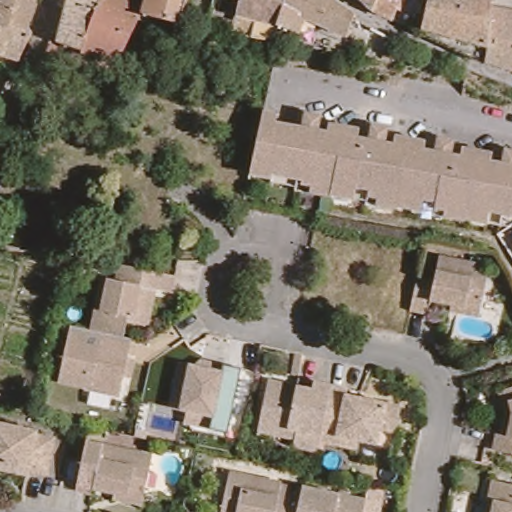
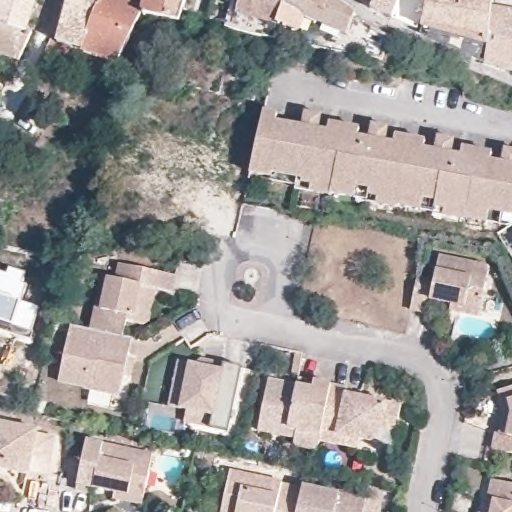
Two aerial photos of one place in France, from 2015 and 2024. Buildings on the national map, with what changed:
unchanged [(31,32),(18,60),(0,53),(0,27),(0,26),(0,0),(34,0),(26,24),(31,32)]
unchanged [(58,30),(65,2),(65,0),(145,0),(143,8),(153,11),(150,19),(137,14),(116,57),(56,37),(58,30)]
unchanged [(178,16),(153,11),(143,8),(145,0),(184,0),(181,7),(178,16)]
unchanged [(273,35),(233,27),(228,26),(234,0),(280,0),(276,21),(273,35)]
unchanged [(353,12),(346,31),(303,12),(296,27),(276,21),(280,0),(341,0),(354,8),(353,12)]
unchanged [(371,0),(402,0),(397,14),(374,2),(371,0)]
unchanged [(489,57),(423,25),(425,22),(430,0),(496,0),(496,2),(512,4),(512,64),(489,57)]
unchanged [(373,28),(390,37),(385,47),(368,41),(373,28)]
unchanged [(58,79),(33,70),(49,35),(56,37),(116,57),(111,69),(107,76),(66,61),(58,79)]
unchanged [(508,231),(486,227),(461,222),(460,226),(440,222),(431,221),(431,216),(417,212),(397,209),(396,212),(374,207),(364,206),(364,201),(351,199),(330,194),(328,198),(309,194),(301,193),(300,191),(269,185),(268,183),(268,182),(248,177),(261,114),(275,118),(274,126),(299,131),(303,117),(318,120),(315,135),(325,137),(327,127),(357,134),(356,143),(365,145),(368,131),(386,134),(383,148),(390,150),(392,142),(421,148),(420,157),(432,159),(435,145),(451,149),(448,163),(456,165),(459,156),(488,162),(486,173),(497,175),(500,160),(512,162),(512,228),(508,231)]
unchanged [(435,300),(433,307),(413,303),(420,271),(439,274),(443,250),(487,258),(491,263),(483,301),(482,308),(435,300)]
unchanged [(148,322),(135,319),(132,318),(120,327),(105,312),(113,279),(119,280),(123,264),(179,276),(176,292),(160,288),(153,319),(148,322)]
new [(8,265),(30,273),(21,300),(40,307),(31,335),(0,324),(0,270),(5,272),(8,265)]
unchanged [(65,380),(73,338),(105,345),(108,331),(131,336),(138,337),(127,388),(125,395),(89,387),(90,385),(65,380)]
unchanged [(238,372),(223,430),(176,422),(179,412),(164,407),(175,361),(238,372)]
unchanged [(272,373),(316,382),(319,375),(335,378),(323,432),(321,442),(308,438),(303,436),(299,431),(263,423),(265,413),(272,373)]
unchanged [(340,436),(323,432),(335,378),(353,382),(352,387),(361,389),(407,399),(401,425),(386,422),(383,436),(362,432),(361,441),(340,436)]
unchanged [(501,435),(505,418),(507,418),(512,419),(512,437),(501,435)]
unchanged [(33,435),(50,437),(45,466),(43,468),(26,466),(25,470),(0,464),(0,424),(34,431),(33,435)]
unchanged [(90,487),(74,483),(80,452),(97,455),(101,438),(150,447),(141,491),(139,497),(90,487)]
unchanged [(233,464),(283,474),(283,477),(306,482),(299,512),(224,512),(224,510),(233,464)]
unchanged [(492,502),(497,479),(504,481),(512,483),(512,512),(489,512),(492,502)]
unchanged [(306,482),(306,480),(370,492),(365,512),(299,512),(306,482)]

